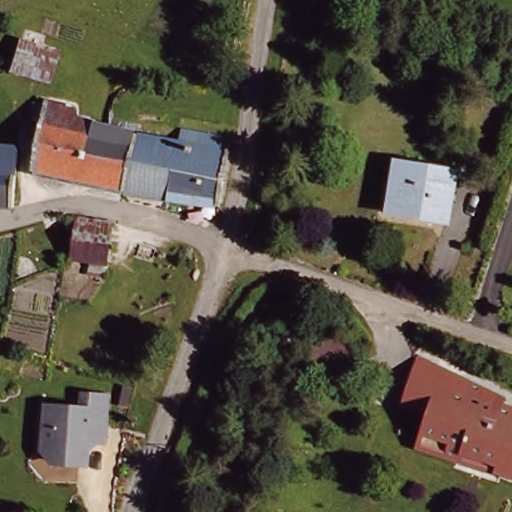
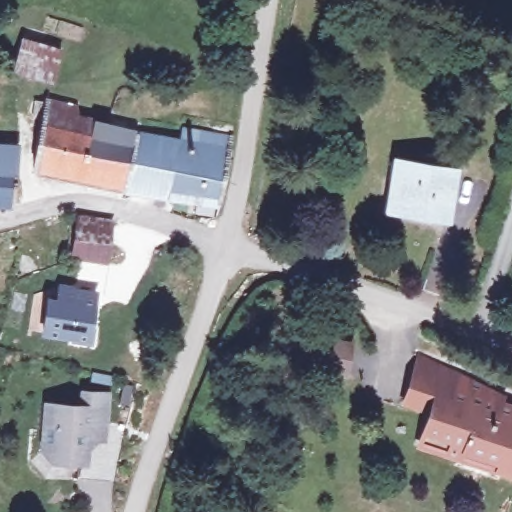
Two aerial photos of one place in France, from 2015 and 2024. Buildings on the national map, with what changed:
unchanged [(67,50),(60,77),(22,67),(31,39),(67,50)]
unchanged [(128,181),(43,164),(54,116),(38,114),(42,98),(55,101),(56,95),(85,101),(86,112),(113,117),(114,120),(146,126),(128,181)]
unchanged [(189,135),(191,123),(237,132),(221,196),(128,181),(146,126),(189,135)]
unchanged [(17,137),(17,193),(0,192),(0,136),(17,137)]
unchanged [(456,178),(445,221),(397,210),(406,167),(456,178)]
unchanged [(119,217),(110,268),(96,266),(98,255),(81,252),(88,212),(119,217)]
new [(34,293),(55,295),(58,280),(99,290),(93,344),(40,335),(40,332),(29,330),(34,293)]
unchanged [(439,411),(413,403),(428,356),(452,367),(439,411)]
unchanged [(439,411),(452,367),(512,390),(512,469),(429,441),(439,411)]
unchanged [(82,407),(83,395),(107,394),(107,439),(90,439),(90,461),(59,462),(46,451),(46,407),(82,407)]

